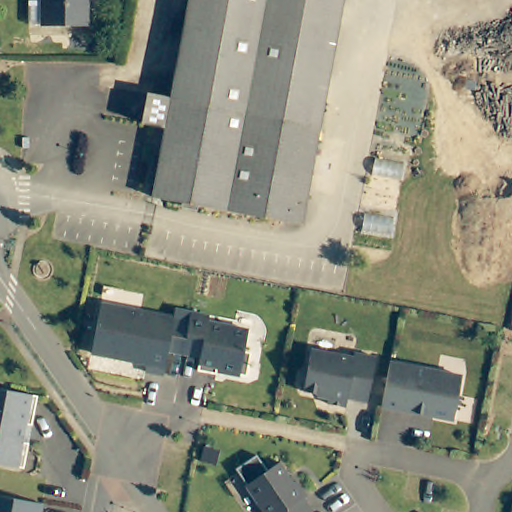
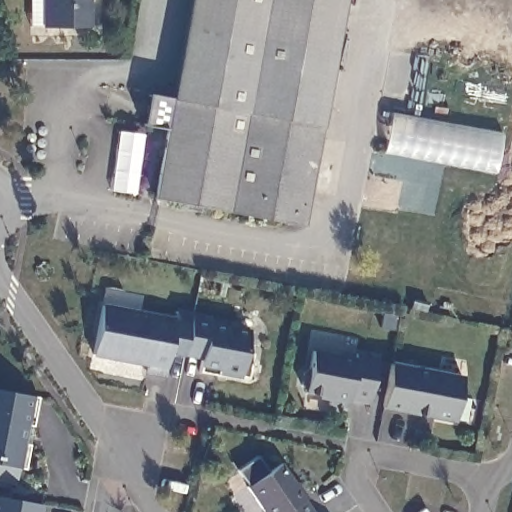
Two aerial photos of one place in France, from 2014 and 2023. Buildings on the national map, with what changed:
unchanged [(26,9),(26,0),(85,0),(85,9),(26,9)]
unchanged [(149,199),(162,131),(139,126),(145,95),(170,100),(187,0),(343,0),(300,225),(149,199)]
new [(504,132),(495,170),(382,150),(391,112),(504,132)]
unchanged [(180,316),(170,373),(151,370),(152,362),(97,353),(105,303),(180,316)]
unchanged [(210,319),(209,325),(249,332),(245,353),(252,355),(248,378),(226,375),(226,371),(219,370),(217,377),(199,373),(201,360),(184,356),(191,316),(210,319)]
unchanged [(355,358),(356,353),(377,357),(369,403),(349,400),(347,407),(330,404),(330,396),(305,392),(305,391),(301,385),(303,372),(309,368),(312,350),(355,358)]
unchanged [(463,380),(456,423),(382,410),(390,367),(463,380)]
unchanged [(45,395),(39,424),(33,423),(29,441),(35,442),(30,467),(0,461),(0,386),(45,395)]
unchanged [(308,500),(316,512),(266,512),(250,488),(285,464),(299,485),(301,483),(311,498),(308,500)]
unchanged [(44,507),(43,512),(0,512),(0,498),(44,507)]

